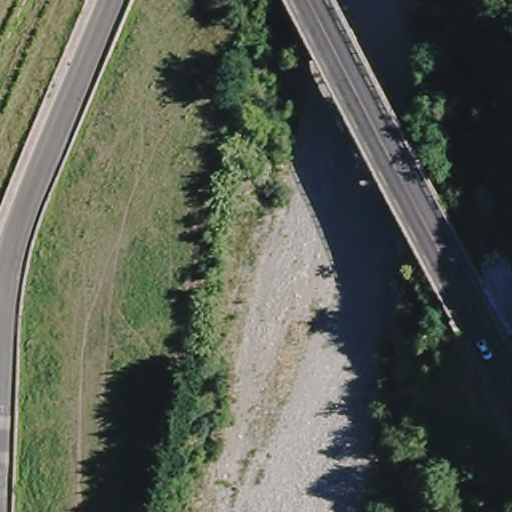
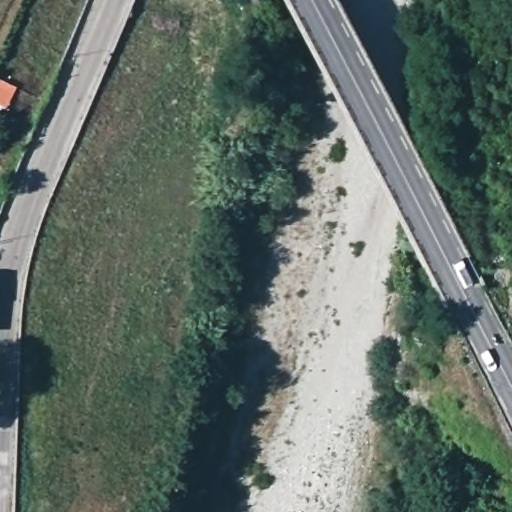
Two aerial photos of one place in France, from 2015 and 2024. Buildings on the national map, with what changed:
new [(0,111),(0,81),(15,88),(5,114),(0,111)]

